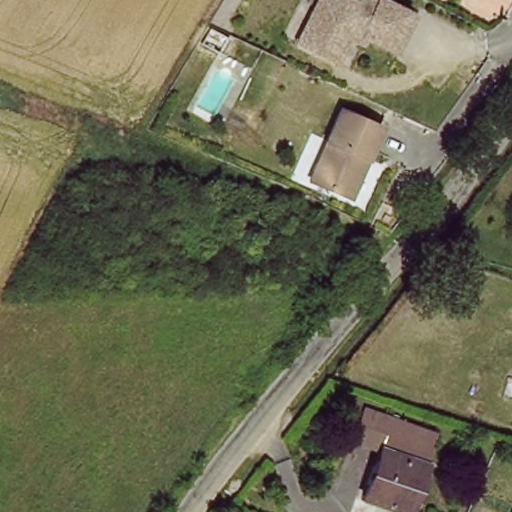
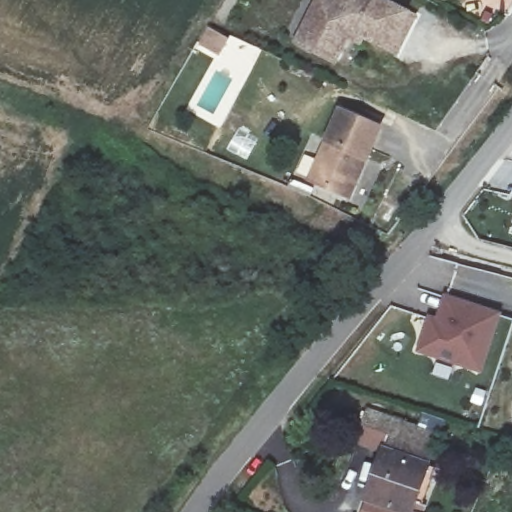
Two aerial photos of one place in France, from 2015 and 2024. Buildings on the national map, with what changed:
unchanged [(311,17),(320,0),(326,3),(336,8),(340,0),(368,0),(414,23),(395,60),(362,43),(359,50),(346,43),(334,68),(312,57),(296,48),(301,37),(311,17)]
unchanged [(326,140),(341,110),(381,130),(349,195),(318,179),(310,176),(326,140)]
new [(502,313),(485,375),(417,353),(429,314),(438,317),(444,295),(502,313)]
unchanged [(365,414),(438,436),(430,464),(416,512),(405,512),(366,498),(383,449),(356,442),(365,414)]

